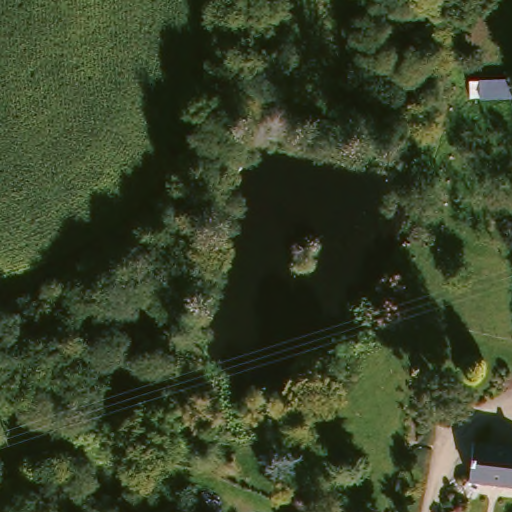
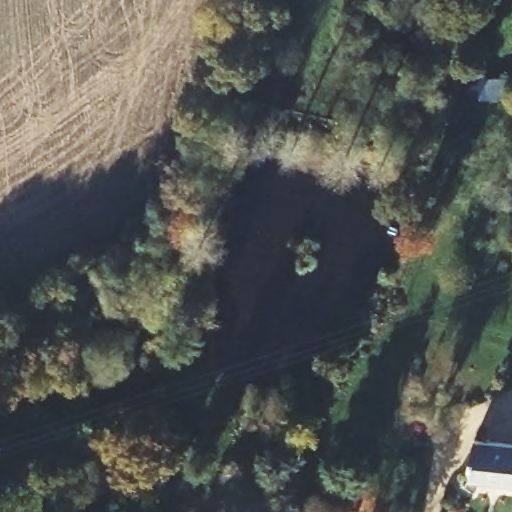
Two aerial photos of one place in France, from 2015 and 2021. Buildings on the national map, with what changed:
unchanged [(477,438),(512,444),(512,484),(472,478),(477,438)]

